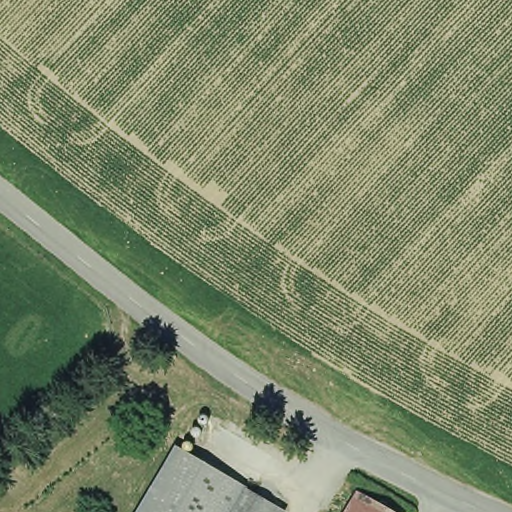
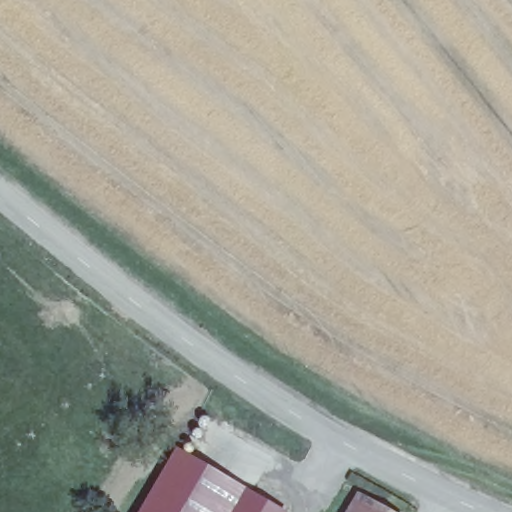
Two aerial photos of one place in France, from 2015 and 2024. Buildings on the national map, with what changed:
unchanged [(277,505),(273,512),(135,512),(175,445),(277,505)]
unchanged [(402,512),(347,512),(361,489),(402,512)]

